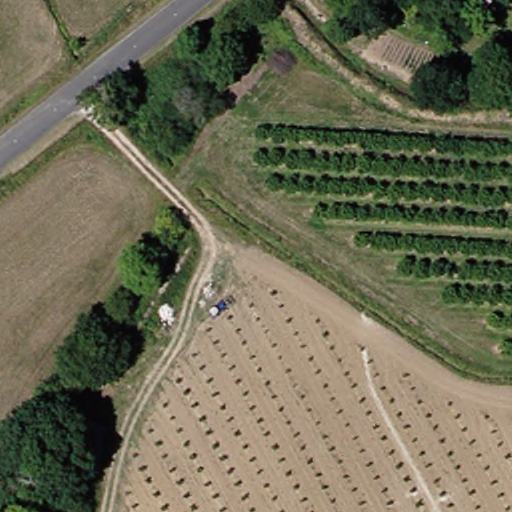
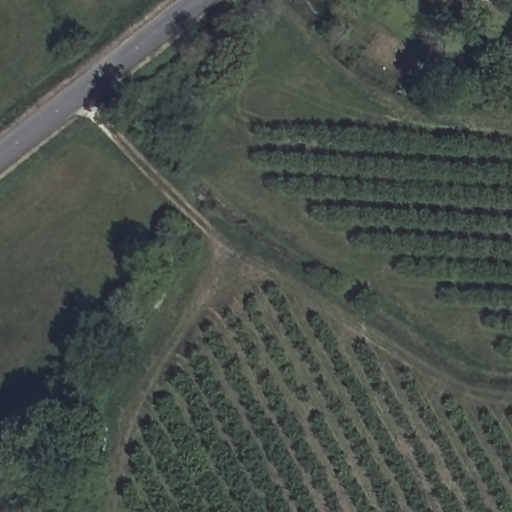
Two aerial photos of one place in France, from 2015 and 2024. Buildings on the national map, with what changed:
unchanged [(92,443),(92,485),(64,485),(65,444),(92,443)]

